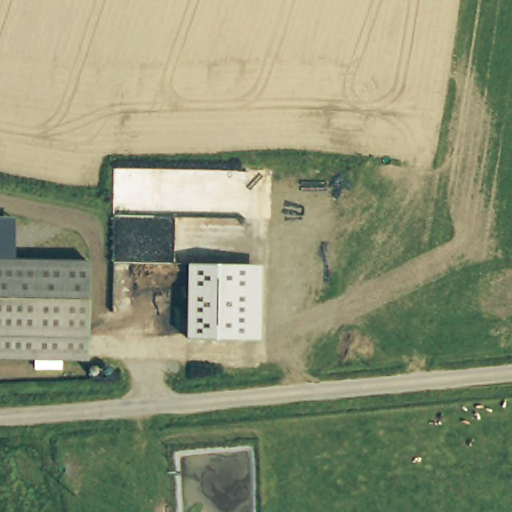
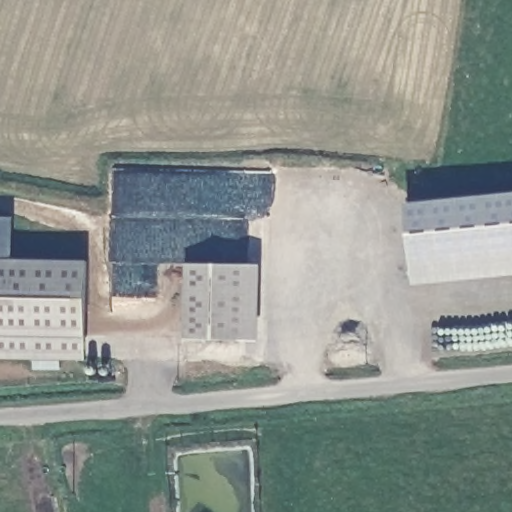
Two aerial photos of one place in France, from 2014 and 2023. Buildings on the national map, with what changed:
new [(512,191),(512,275),(417,285),(407,202),(512,191)]
unchanged [(82,354),(0,354),(0,216),(9,216),(8,257),(86,259),(86,291),(84,316),(82,354)]
unchanged [(261,340),(185,337),(186,262),(262,264),(261,340)]

